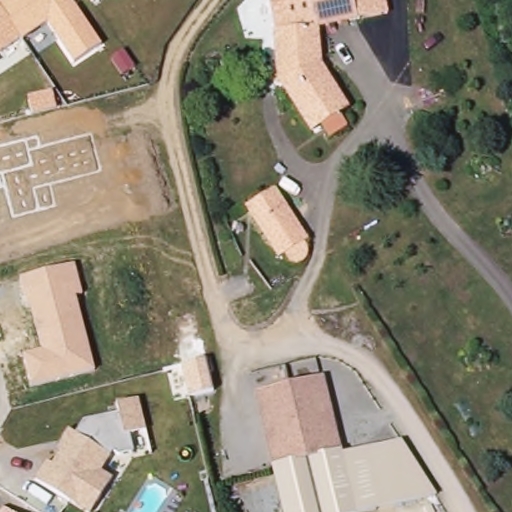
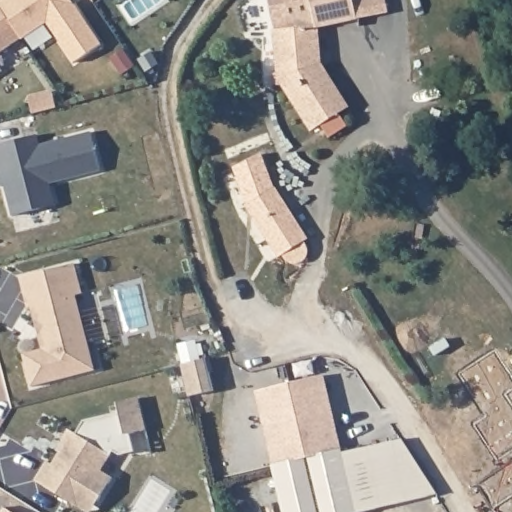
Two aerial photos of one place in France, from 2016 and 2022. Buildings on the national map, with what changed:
unchanged [(101,46),(76,64),(48,24),(0,55),(0,3),(5,0),(70,0),(101,46)]
unchanged [(92,0),(97,0),(94,2),(92,0)]
unchanged [(268,0),(310,0),(317,27),(306,28),(275,31),(268,0)]
unchanged [(310,0),(353,0),(358,17),(318,27),(317,27),(310,0)]
unchanged [(353,0),(388,0),(392,12),(358,17),(353,0)]
unchanged [(321,62),(348,107),(340,112),(348,125),(330,137),(321,125),(312,130),(280,85),(275,84),(274,83),(273,82),(272,81),(272,79),(272,77),(273,76),(274,75),(274,74),(275,73),(276,73),(277,72),(278,73),(279,72),(275,31),(306,28),(317,27),(318,27),(320,49),(321,62)]
new [(13,216),(5,186),(0,187),(0,145),(26,138),(37,135),(40,145),(91,132),(101,170),(50,183),(56,205),(39,209),(13,216)]
unchanged [(306,239),(303,241),(308,248),(308,250),(308,252),(308,253),(308,255),(306,257),(305,259),(302,262),(298,263),(295,263),(291,262),(288,261),(282,255),(279,256),(270,242),(257,221),(248,207),(275,189),(276,191),(306,239)]
unchanged [(33,388),(23,355),(43,350),(32,305),(28,306),(21,278),(76,264),(84,294),(77,297),(96,371),(33,388)]
unchanged [(214,390),(189,396),(182,364),(207,358),(214,390)]
unchanged [(342,453),(356,512),(284,512),(256,391),(324,375),(342,453)]
unchanged [(130,435),(134,452),(119,456),(113,453),(103,472),(113,477),(92,512),(83,512),(36,481),(47,462),(52,464),(64,445),(64,438),(70,429),(76,433),(84,421),(118,413),(116,405),(140,398),(148,430),(130,435)]
unchanged [(362,512),(356,512),(342,453),(400,439),(401,439),(436,494),(362,512)]
unchanged [(1,512),(4,507),(11,512),(1,512)]

